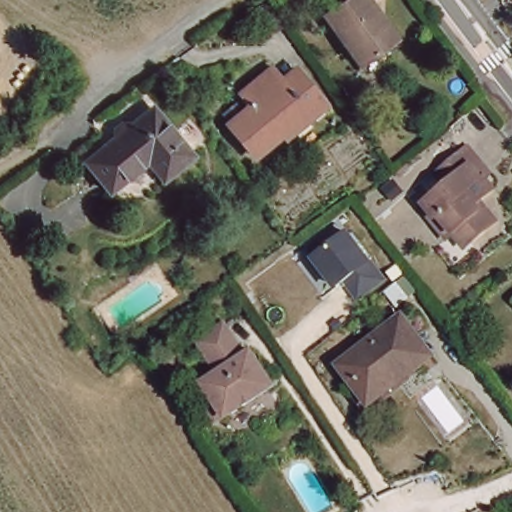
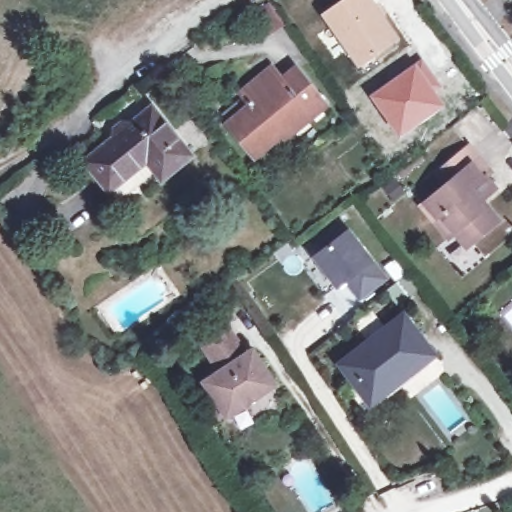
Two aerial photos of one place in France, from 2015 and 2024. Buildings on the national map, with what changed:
unchanged [(287,13),(280,2),(284,0),(303,0),(304,2),(287,13)]
unchanged [(369,71),(333,21),(349,10),(342,0),(374,0),(406,44),(369,71)]
unchanged [(271,34),(256,12),(267,4),(282,26),(271,34)]
new [(420,59),(442,87),(439,90),(449,104),(400,139),(368,95),(420,59)]
unchanged [(244,90),(275,65),(286,78),(302,65),(330,100),(297,127),(292,121),(287,126),(287,128),(258,152),(232,120),(255,102),(244,90)]
unchanged [(187,141),(157,166),(142,147),(104,178),(80,147),(147,92),(187,141)]
unchanged [(459,227),(453,232),(437,213),(426,200),(430,197),(451,179),(442,167),(450,161),(474,141),(496,167),(490,172),(500,183),(486,195),(490,200),(503,216),(477,237),(471,242),(459,227)]
unchanged [(351,229),(373,261),(386,280),(360,301),(347,280),(334,289),(311,258),(351,229)]
unchanged [(432,354),(371,402),(341,363),(403,316),(432,354)]
unchanged [(202,393),(212,387),(201,372),(217,362),(210,352),(202,341),(230,322),(237,332),(252,353),(257,350),(281,383),(232,417),(230,413),(221,421),(202,393)]

